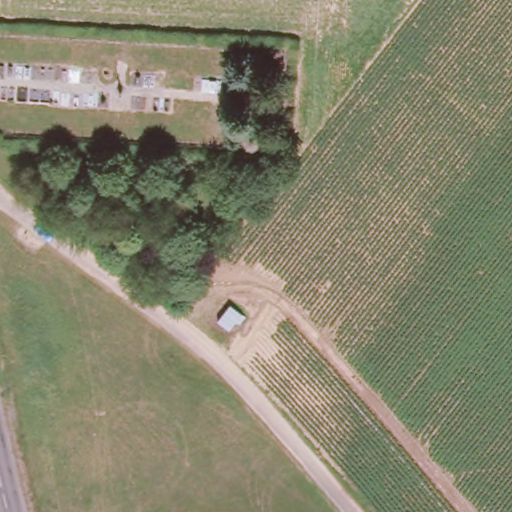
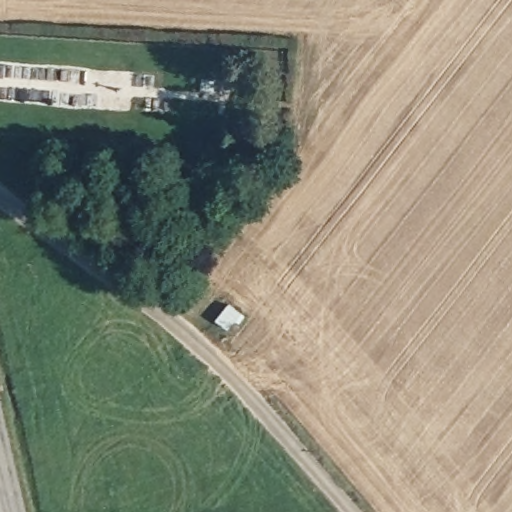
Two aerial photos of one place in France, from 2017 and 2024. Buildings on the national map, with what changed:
unchanged [(232,303),(248,316),(242,323),(239,320),(231,329),(220,319),(232,303)]

